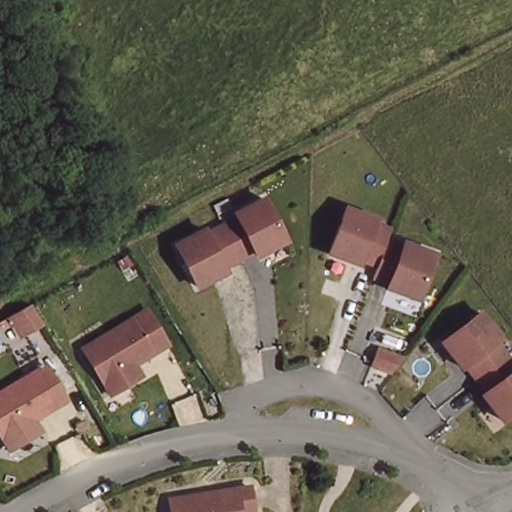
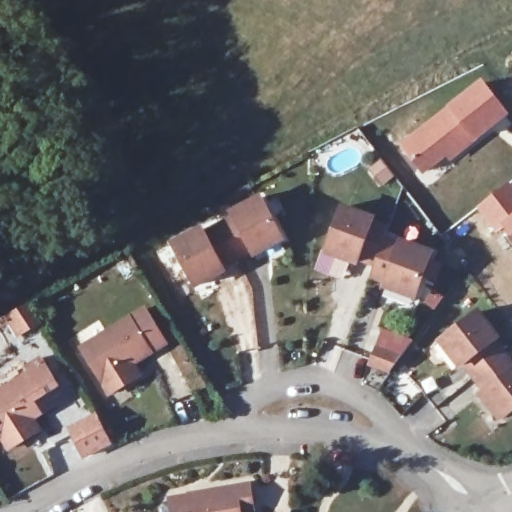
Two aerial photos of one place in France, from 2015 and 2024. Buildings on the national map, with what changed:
new [(483,78),(511,113),(450,162),(445,157),(422,175),(396,142),(483,78)]
new [(512,185),(512,216),(500,226),(493,232),(474,207),(507,179),(512,185)]
unchanged [(280,235),(252,250),(250,246),(219,261),(221,266),(192,280),(170,237),(200,223),(202,227),(232,212),(230,207),(259,193),(280,235)]
unchanged [(372,209),(370,213),(387,220),(382,231),(399,237),(400,233),(430,244),(414,289),(384,277),(385,273),(386,273),(370,267),(374,256),(357,250),(356,254),(327,243),(343,198),(372,209)]
new [(512,241),(500,226),(512,216),(512,241)]
unchanged [(27,299),(40,320),(11,334),(0,313),(27,299)]
unchanged [(165,343),(132,362),(139,374),(108,392),(81,345),(145,308),(165,343)]
unchanged [(497,333),(492,336),(512,361),(512,405),(500,415),(480,390),(484,387),(462,359),(459,362),(440,337),(477,308),(497,333)]
new [(380,329),(410,340),(388,377),(366,367),(380,329)]
unchanged [(64,397),(50,405),(31,417),(38,428),(7,446),(0,434),(0,388),(42,362),(59,389),(64,397)]
unchanged [(243,482),(247,505),(233,507),(234,512),(165,512),(162,495),(243,482)]

